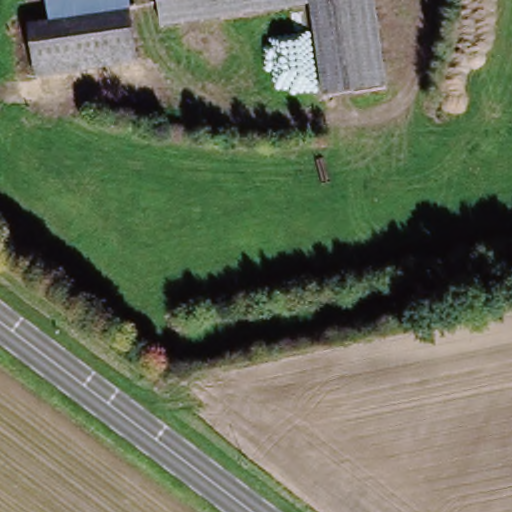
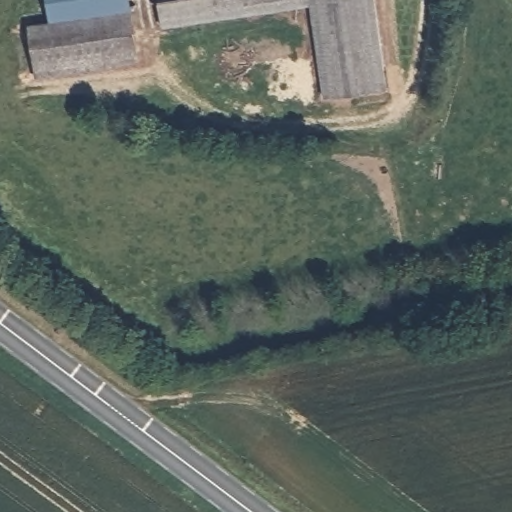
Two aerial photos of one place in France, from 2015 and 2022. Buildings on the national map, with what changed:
unchanged [(130,10),(51,23),(47,0),(128,0),(130,10)]
unchanged [(156,31),(153,7),(201,0),(304,0),(305,10),(156,31)]
unchanged [(381,95),(320,105),(305,10),(304,0),(366,0),(381,95)]
unchanged [(37,79),(29,31),(131,15),(137,64),(37,79)]

